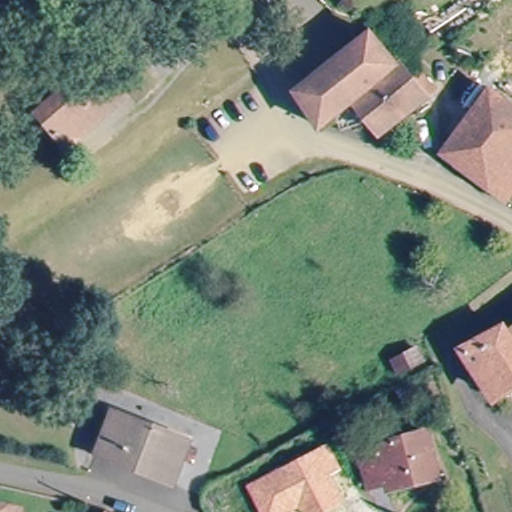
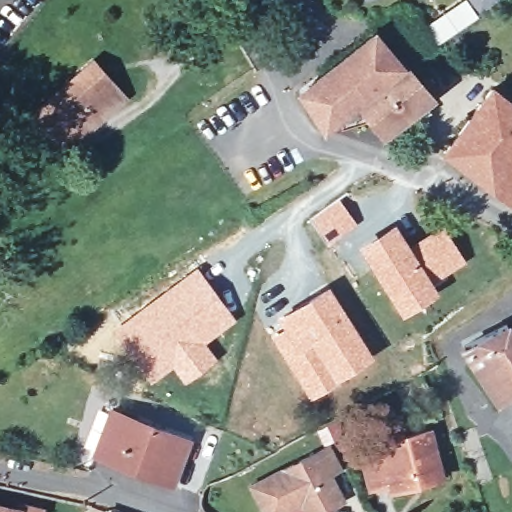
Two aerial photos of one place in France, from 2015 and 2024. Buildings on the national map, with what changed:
new [(401,6),(415,31),(457,0),(465,0),(477,13),(454,36),(450,32),(433,48),(428,43),(417,50),(406,35),(389,18),(401,6)]
unchanged [(356,98),(318,125),(293,92),(365,37),(406,77),(416,69),(433,86),(383,127),(356,98)]
unchanged [(139,98),(83,157),(49,125),(107,68),(139,98)]
unchanged [(512,100),(512,188),(505,196),(446,151),(494,86),(512,100)]
new [(338,199),(356,224),(327,242),(310,218),(338,199)]
new [(394,222),(409,244),(442,223),(465,260),(433,281),(438,290),(400,314),(357,246),(394,222)]
new [(108,336),(107,333),(197,267),(236,319),(206,342),(216,357),(184,382),(171,367),(149,383),(123,354),(105,339),(108,336)]
new [(285,327),(278,316),(328,284),(372,353),(309,397),(271,337),(285,327)]
unchanged [(509,323),(512,327),(512,387),(500,397),(468,346),(509,323)]
unchanged [(183,437),(173,478),(97,457),(107,416),(183,437)]
unchanged [(430,436),(436,481),(417,483),(416,474),(367,479),(364,442),(430,436)]
unchanged [(341,472),(330,478),(344,503),(327,512),(300,512),(298,508),(290,512),(261,512),(247,485),(326,443),(341,472)]
unchanged [(29,512),(0,512),(0,507),(29,512)]

